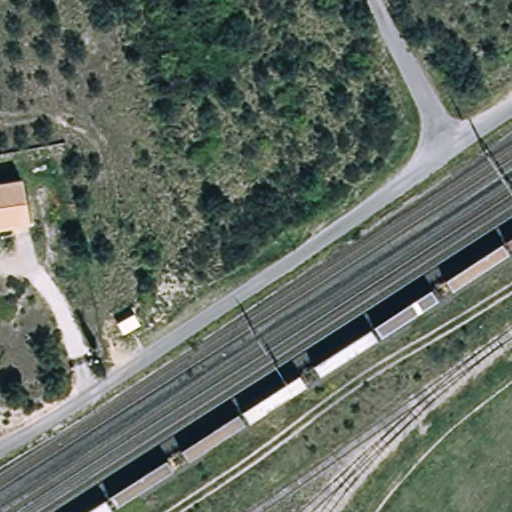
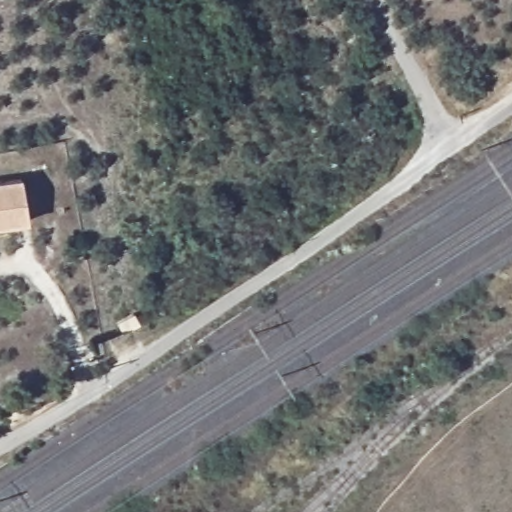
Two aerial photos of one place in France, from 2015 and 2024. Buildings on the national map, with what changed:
unchanged [(32,221),(0,226),(0,182),(26,179),(32,221)]

